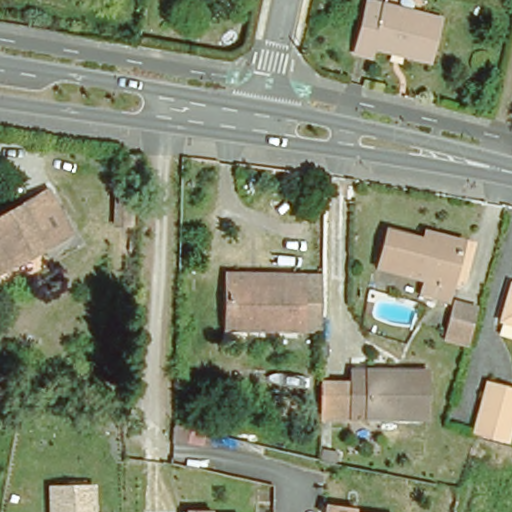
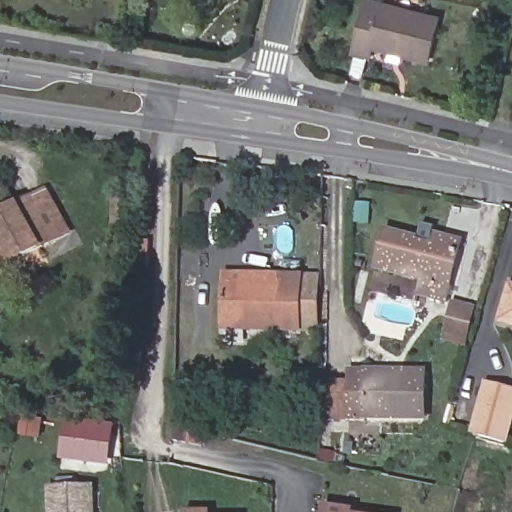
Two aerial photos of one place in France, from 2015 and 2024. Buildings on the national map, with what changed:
unchanged [(370,57),(353,54),(367,2),(438,20),(428,62),(372,48),(370,57)]
unchanged [(122,172),(123,156),(142,157),(141,172),(122,172)]
unchanged [(47,191),(70,235),(0,273),(0,216),(47,191)]
unchanged [(446,287),(449,288),(445,302),(419,294),(423,280),(377,267),(385,238),(422,248),(424,241),(432,243),(456,250),(446,287)]
unchanged [(317,332),(300,332),(224,331),(224,276),(301,277),(318,277),(317,332)]
unchanged [(509,286),(512,286),(512,324),(500,321),(509,286)]
unchanged [(468,350),(443,342),(454,302),(480,310),(468,350)]
unchanged [(347,425),(347,422),(346,380),(346,372),(421,372),(422,425),(347,425)]
unchanged [(347,422),(318,422),(319,382),(346,380),(347,422)]
unchanged [(512,438),(509,447),(478,439),(491,390),(512,395),(512,438)]
unchanged [(267,412),(268,397),(296,399),(295,416),(267,412)]
new [(19,436),(22,416),(32,417),(44,419),(41,438),(29,437),(19,436)]
new [(116,423),(110,467),(60,461),(66,417),(116,423)]
unchanged [(73,487),(96,485),(98,512),(46,512),(45,487),(73,487)]
unchanged [(338,512),(330,512),(330,511),(338,512)]

